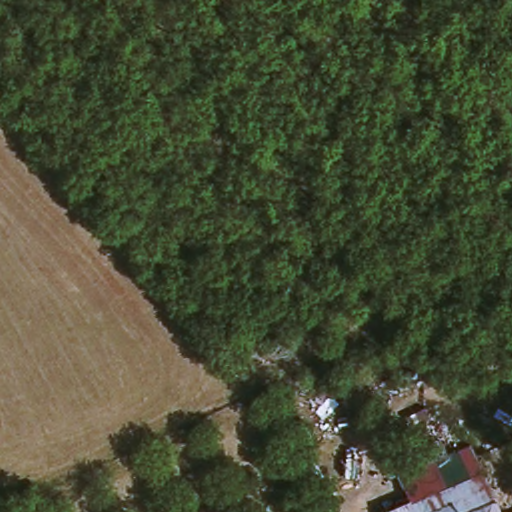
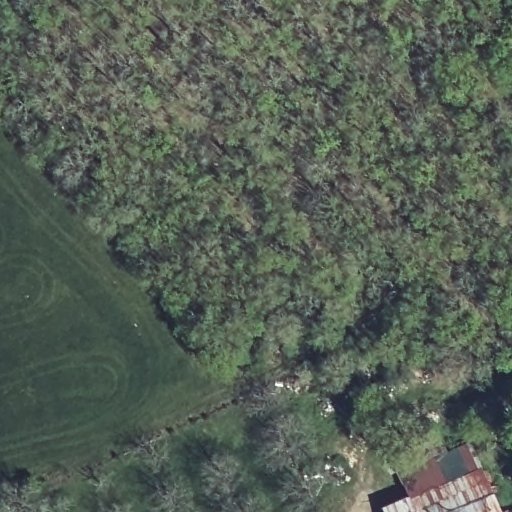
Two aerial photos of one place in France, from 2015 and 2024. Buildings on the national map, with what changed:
unchanged [(407,495),(396,467),(470,445),(499,512),(384,512),(382,507),(407,495)]

